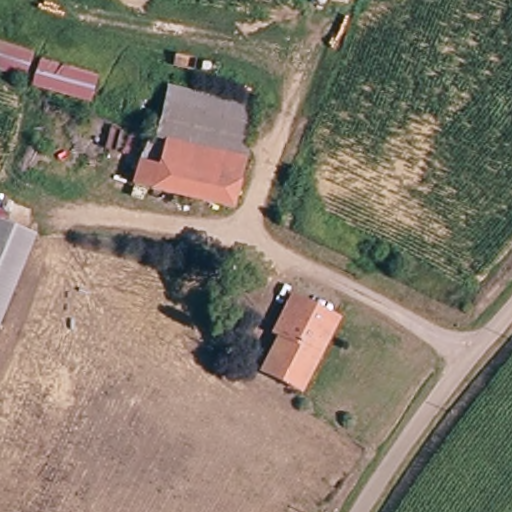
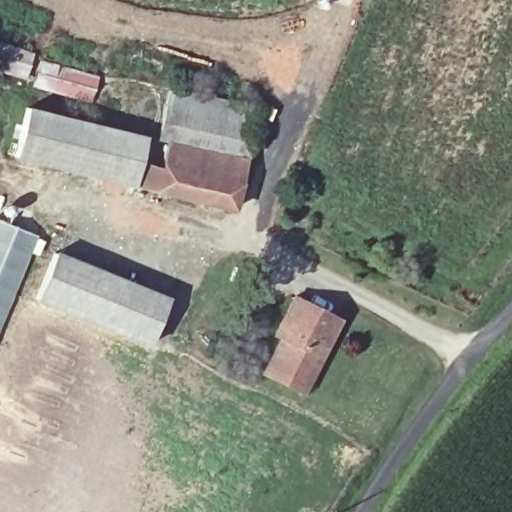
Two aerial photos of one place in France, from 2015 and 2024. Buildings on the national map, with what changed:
new [(92,105),(33,88),(41,61),(99,77),(92,105)]
unchanged [(248,104),(237,157),(161,142),(168,92),(248,104)]
new [(136,170),(131,187),(14,160),(27,109),(145,139),(136,170)]
demolished [(103,123),(146,141),(138,161),(94,142),(103,123)]
unchanged [(130,192),(135,167),(157,170),(161,142),(237,157),(230,210),(130,192)]
unchanged [(0,220),(34,235),(0,316),(0,220)]
new [(169,297),(149,347),(34,302),(55,251),(169,297)]
unchanged [(262,371),(282,331),(274,327),(291,291),(330,310),(338,314),(320,350),(300,389),(262,371)]

